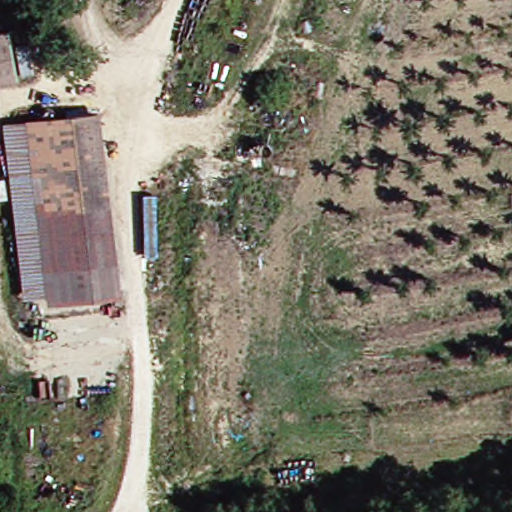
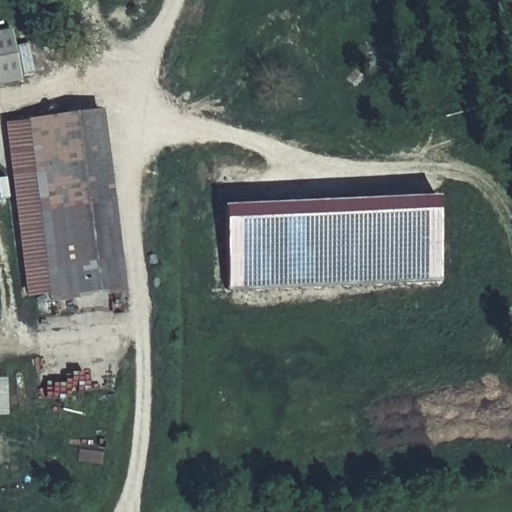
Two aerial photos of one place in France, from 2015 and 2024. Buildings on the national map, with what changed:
unchanged [(0,85),(0,35),(9,33),(18,82),(0,85)]
unchanged [(130,293),(52,301),(51,297),(34,297),(12,124),(19,125),(20,112),(39,111),(40,120),(110,113),(130,293)]
demolished [(245,235),(212,237),(211,170),(243,171),(245,235)]
new [(437,283),(225,291),(222,207),(436,201),(437,283)]

